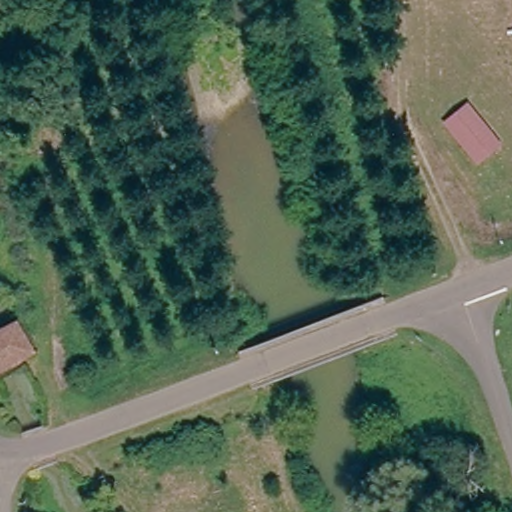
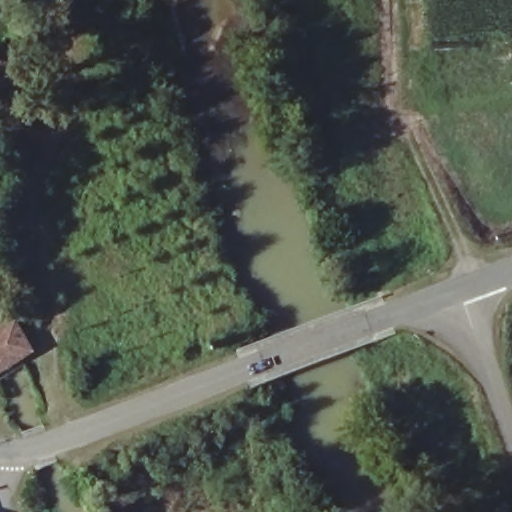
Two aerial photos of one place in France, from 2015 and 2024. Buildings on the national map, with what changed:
demolished [(446,123),(475,108),(499,155),(471,171),(446,123)]
unchanged [(0,324),(7,319),(10,318),(31,351),(0,370),(0,324)]

